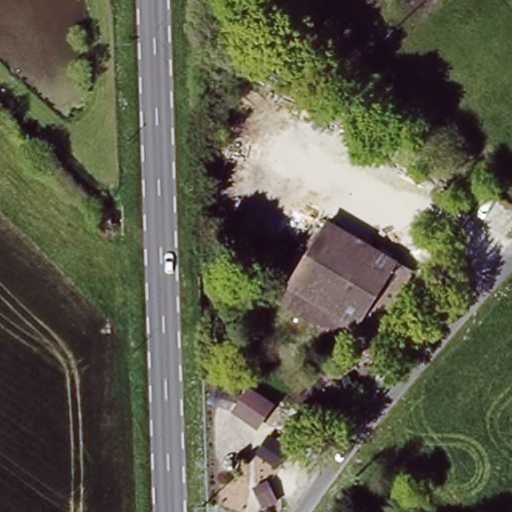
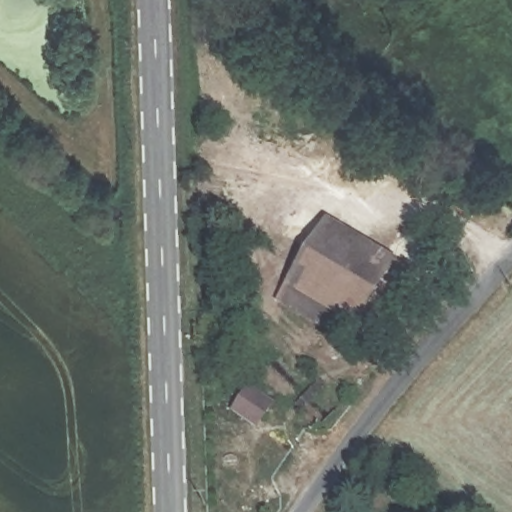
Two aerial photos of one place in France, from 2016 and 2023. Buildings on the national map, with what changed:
unchanged [(289,280),(327,216),(410,267),(371,330),(358,321),(289,280)]
unchanged [(358,321),(349,336),(280,294),(289,280),(358,321)]
unchanged [(230,410),(248,384),(277,404),(259,430),(230,410)]

